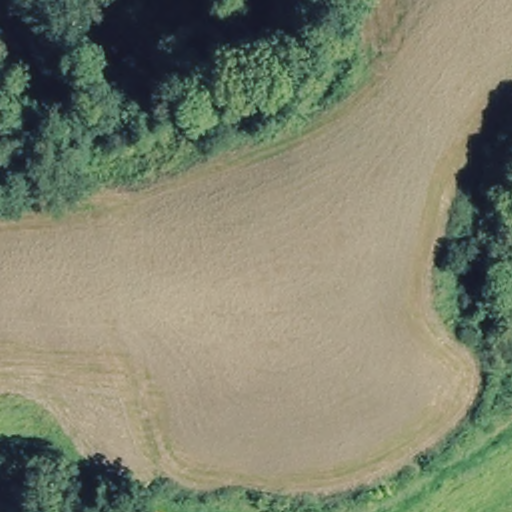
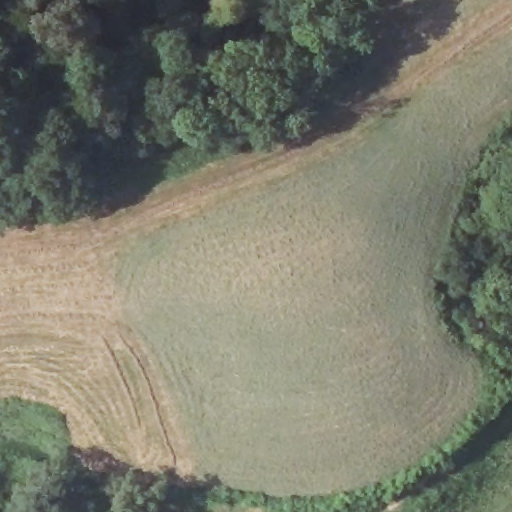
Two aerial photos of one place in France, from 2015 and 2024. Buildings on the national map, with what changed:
[]

